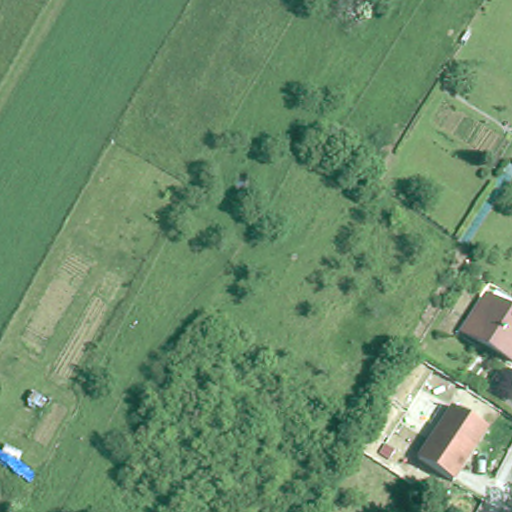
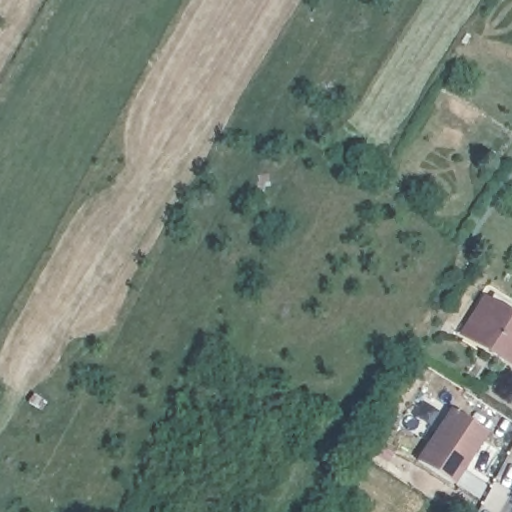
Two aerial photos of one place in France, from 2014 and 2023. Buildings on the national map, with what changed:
unchanged [(465,332),(486,297),(512,314),(512,361),(465,332)]
unchanged [(452,482),(417,458),(452,407),(487,431),(452,482)]

